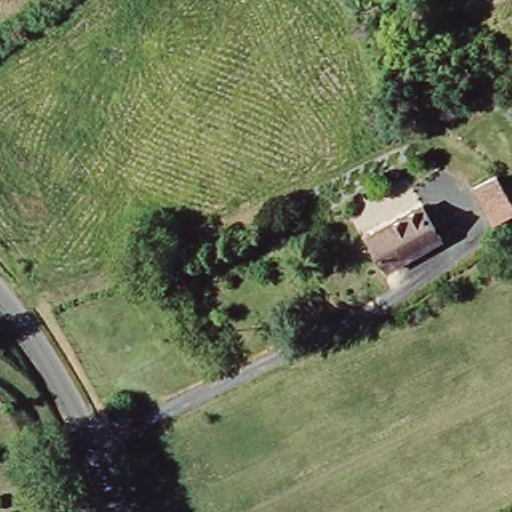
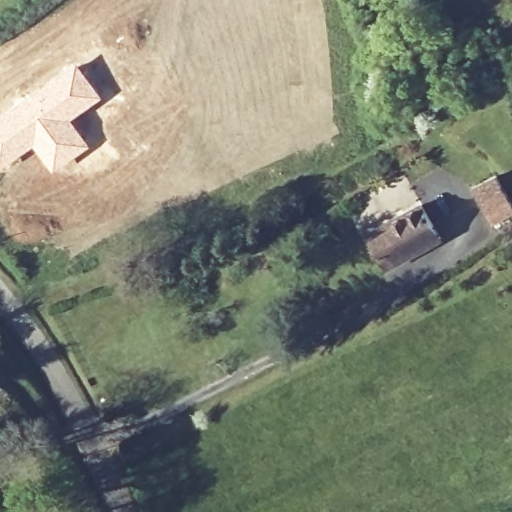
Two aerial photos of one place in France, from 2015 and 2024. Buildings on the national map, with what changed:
new [(103,97),(73,120),(91,146),(53,172),(34,146),(1,168),(0,167),(0,112),(75,60),(103,97)]
unchanged [(479,194),(502,182),(512,203),(512,222),(497,230),(479,194)]
unchanged [(387,269),(367,231),(425,201),(444,239),(387,269)]

